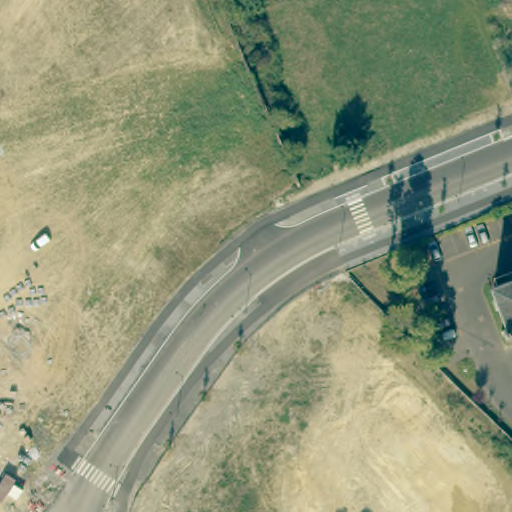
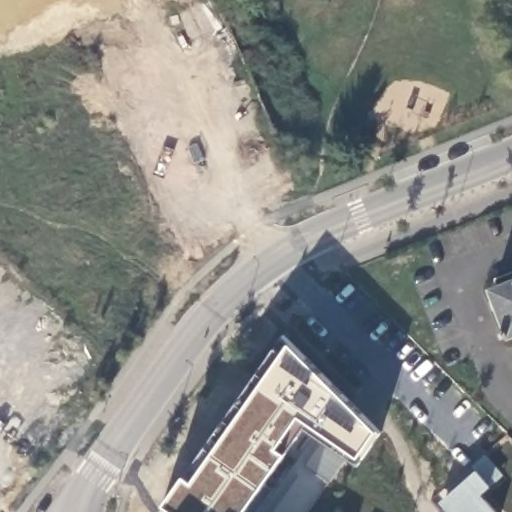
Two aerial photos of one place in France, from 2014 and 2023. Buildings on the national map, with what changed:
unchanged [(505,325),(509,324),(494,283),(512,276),(512,330),(507,331),(505,325)]
new [(359,465),(347,458),(310,512),(161,512),(285,333),(382,432),(359,465)]

